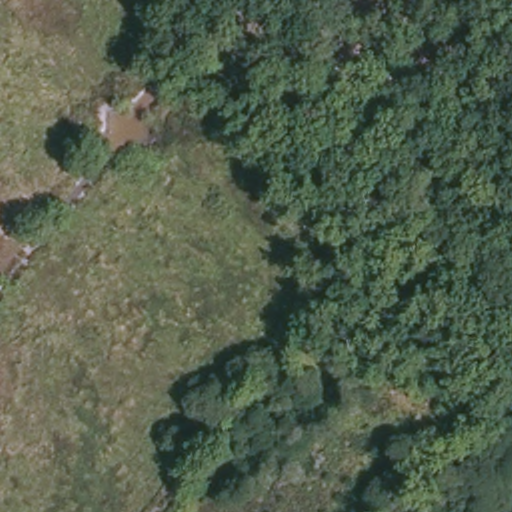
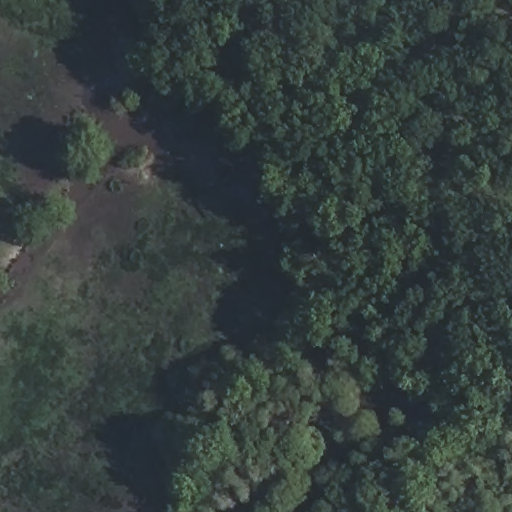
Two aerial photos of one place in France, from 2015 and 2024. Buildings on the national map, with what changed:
[]

